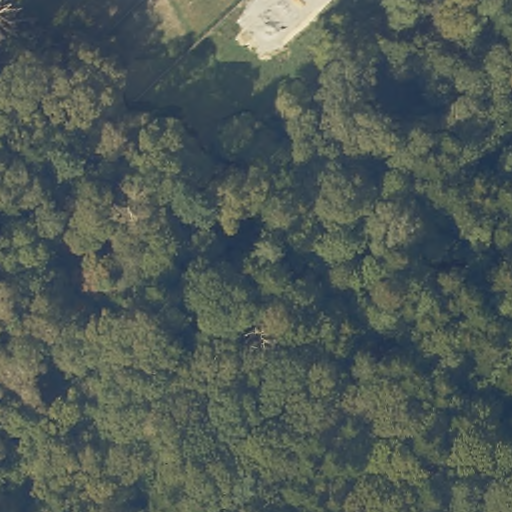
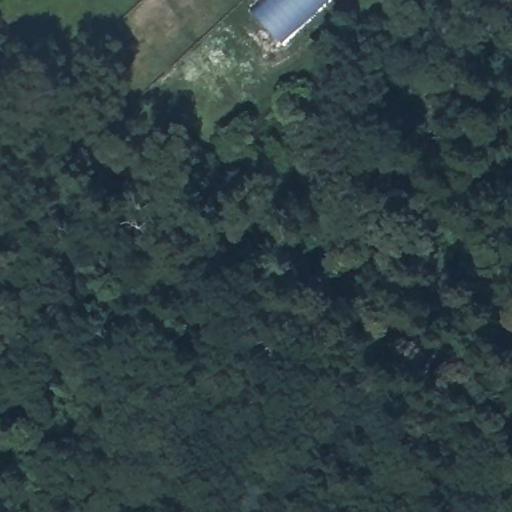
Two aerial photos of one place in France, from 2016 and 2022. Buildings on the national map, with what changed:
new [(264,0),(326,0),(281,42),(252,11),(264,0)]

